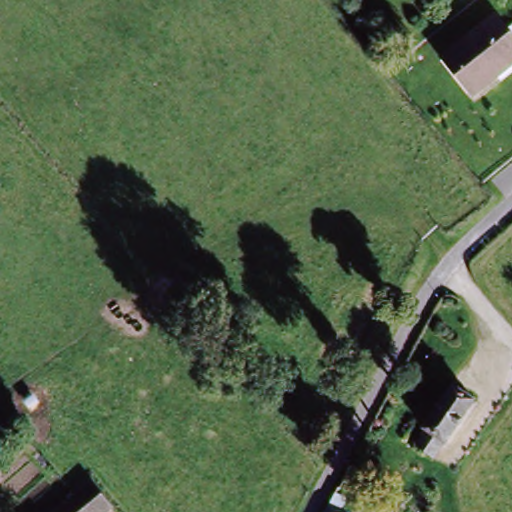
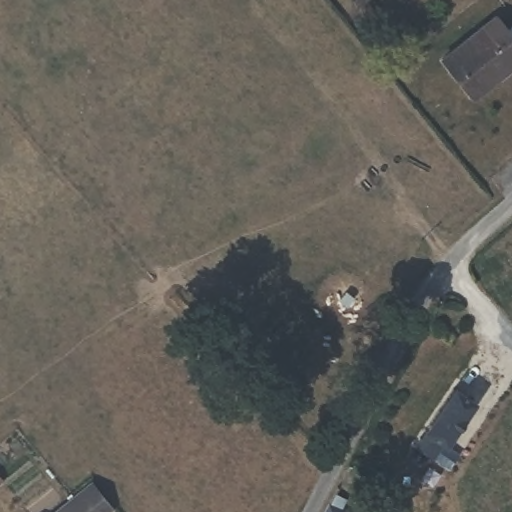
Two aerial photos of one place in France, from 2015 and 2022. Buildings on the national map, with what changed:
unchanged [(441,57),(496,13),(512,32),(512,63),(473,95),(441,57)]
unchanged [(481,405),(446,455),(424,441),(458,390),(481,405)]
unchanged [(111,506),(104,512),(57,512),(91,483),(111,506)]
unchanged [(347,506),(345,512),(326,512),(332,498),(347,506)]

